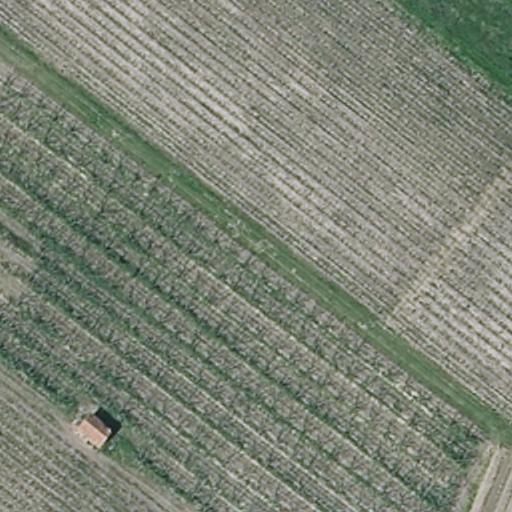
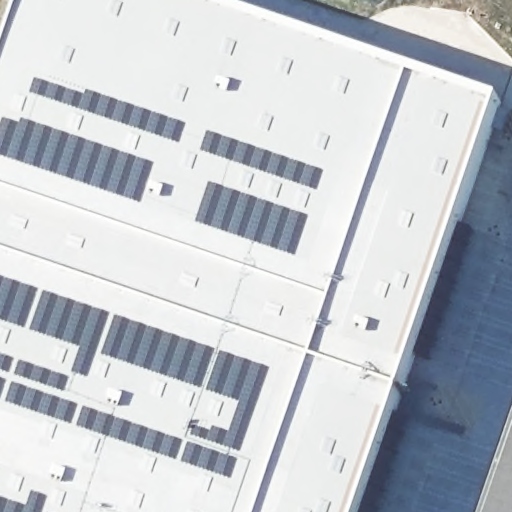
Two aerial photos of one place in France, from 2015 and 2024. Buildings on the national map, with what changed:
new [(26,0),(196,0),(502,105),(364,512),(0,512),(0,77),(26,0)]
demolished [(80,431),(93,415),(114,432),(100,447),(80,431)]

